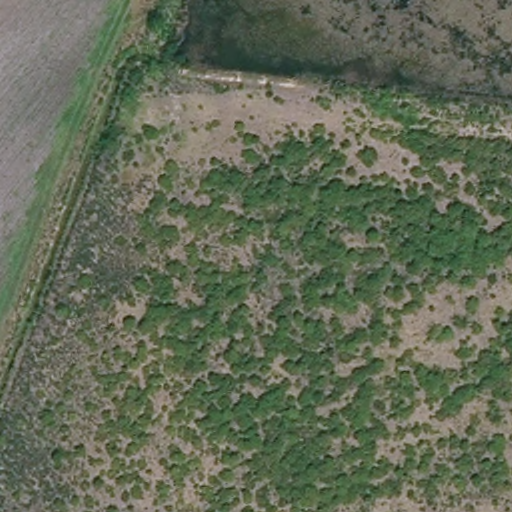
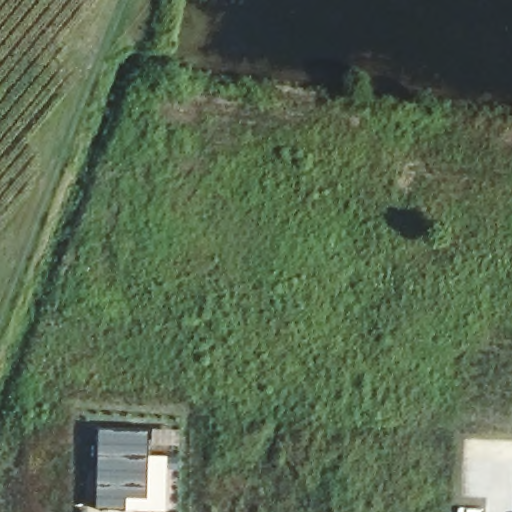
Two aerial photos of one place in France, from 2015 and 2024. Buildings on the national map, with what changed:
new [(97,428),(149,431),(148,454),(166,455),(166,467),(161,467),(161,462),(150,462),(147,498),(126,497),(125,508),(95,507),(97,428)]

